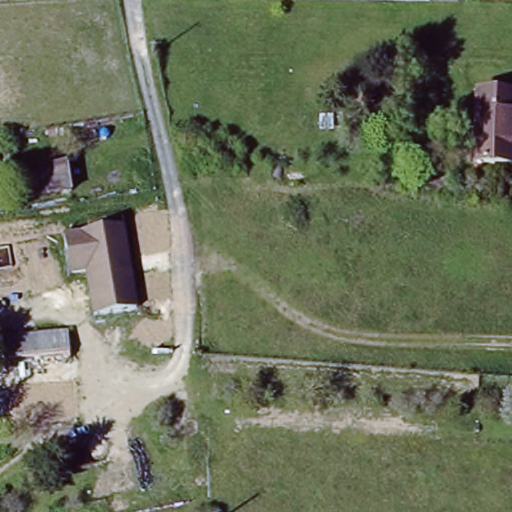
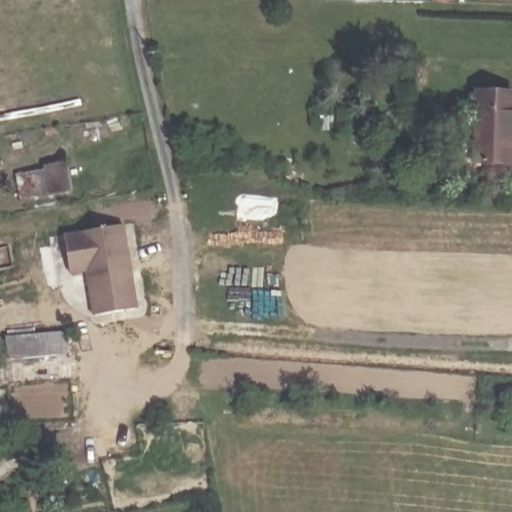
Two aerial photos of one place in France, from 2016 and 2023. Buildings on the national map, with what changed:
unchanged [(512,88),(512,124),(509,160),(473,157),(479,85),(512,88)]
unchanged [(72,158),(77,187),(29,195),(26,162),(72,158)]
unchanged [(124,219),(138,310),(93,318),(86,273),(69,274),(63,232),(124,219)]
unchanged [(67,327),(73,368),(9,377),(5,333),(67,327)]

